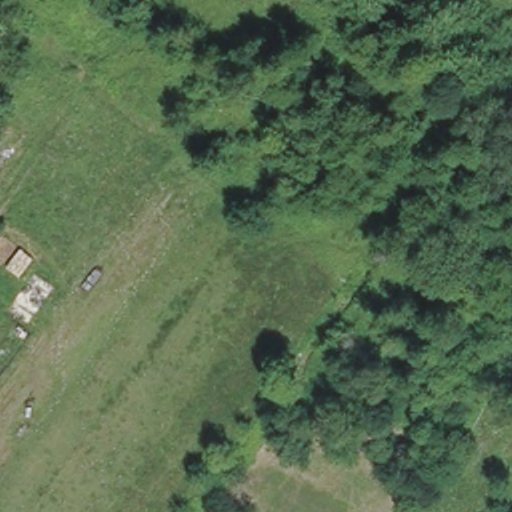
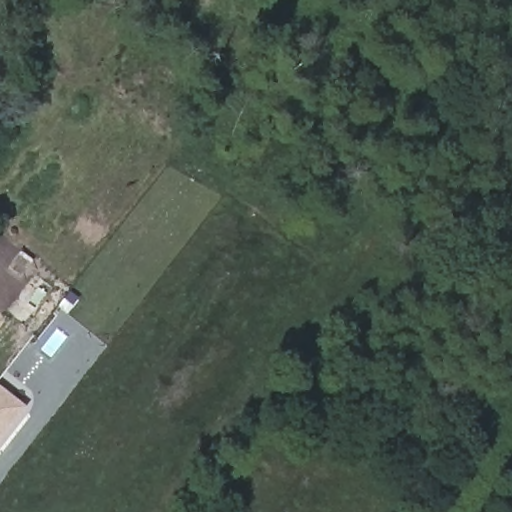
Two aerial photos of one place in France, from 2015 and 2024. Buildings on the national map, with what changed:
new [(28,407),(0,442),(0,384),(28,407)]

